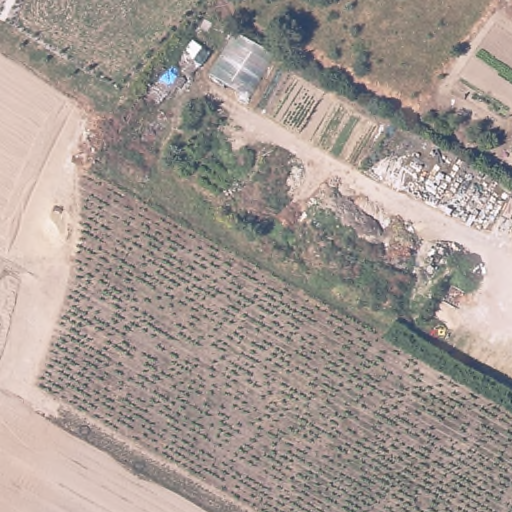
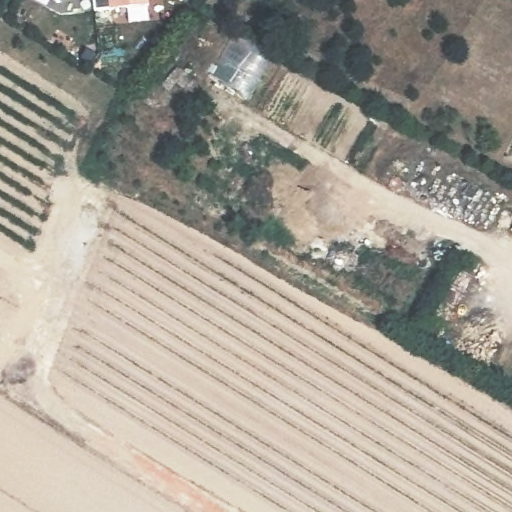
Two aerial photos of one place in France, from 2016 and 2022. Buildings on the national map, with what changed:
new [(147,6),(93,12),(92,0),(147,0),(147,6)]

